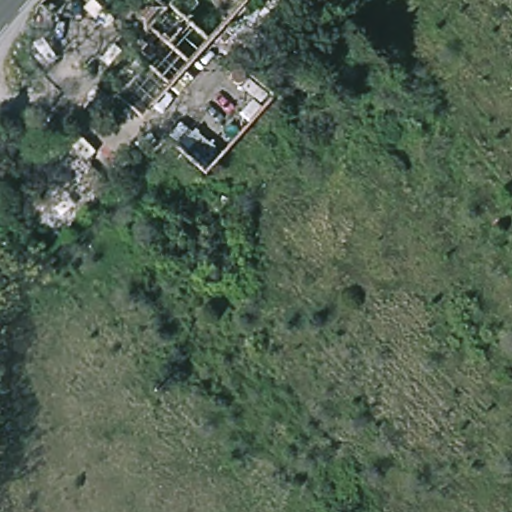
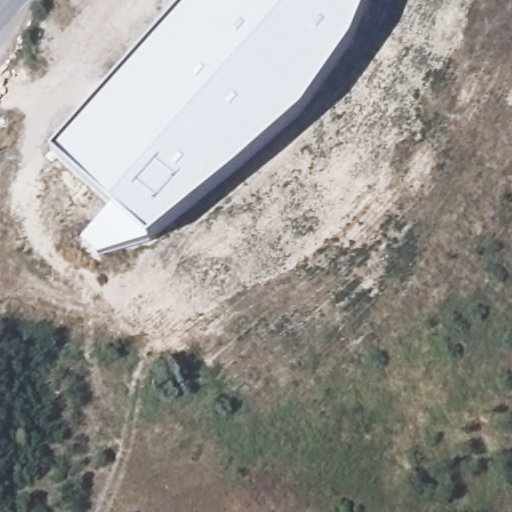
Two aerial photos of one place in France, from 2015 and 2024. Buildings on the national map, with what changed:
new [(354,43),(306,111),(232,177),(152,243),(154,248),(101,260),(84,245),(117,213),(54,155),(192,0),(370,0),(354,43)]

